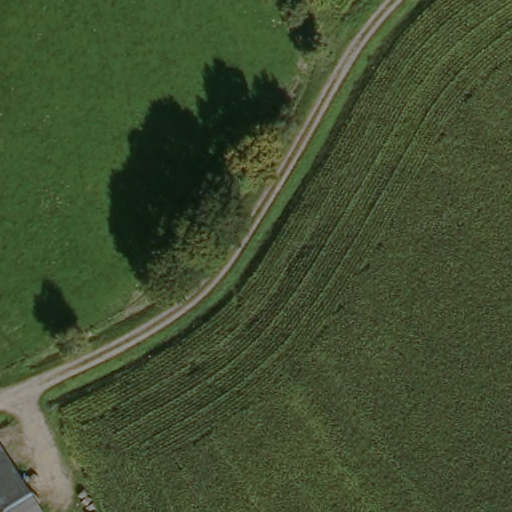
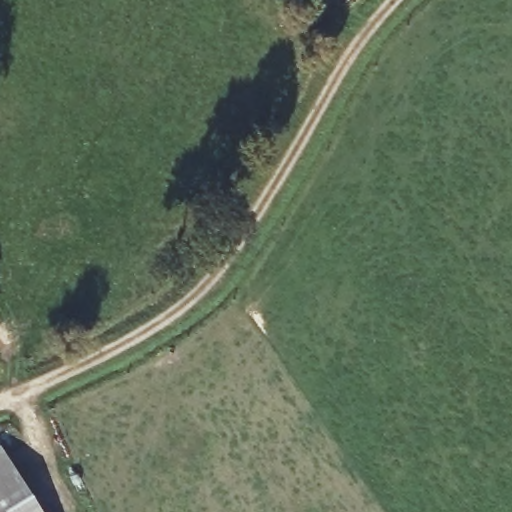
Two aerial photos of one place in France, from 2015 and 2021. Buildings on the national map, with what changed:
unchanged [(0,456),(34,512),(0,512),(0,456)]

